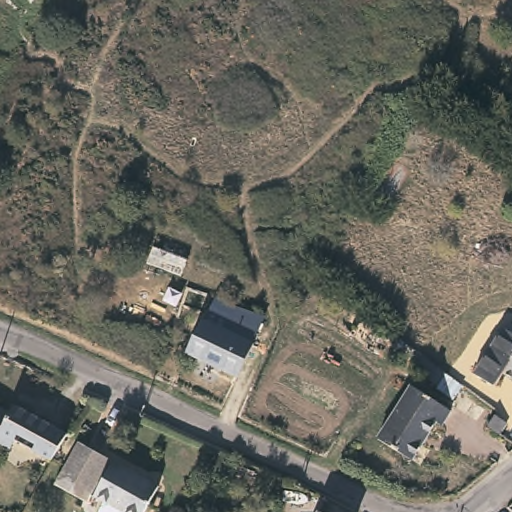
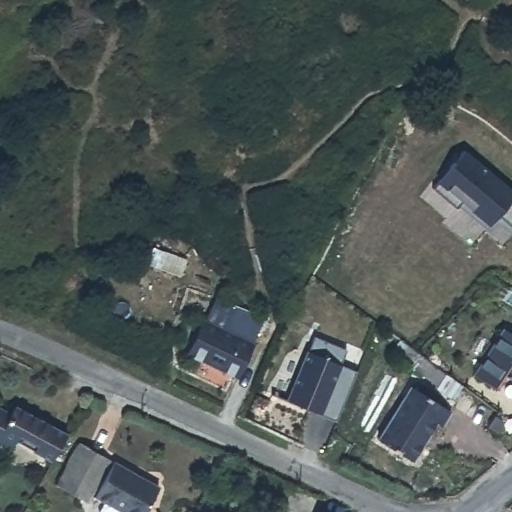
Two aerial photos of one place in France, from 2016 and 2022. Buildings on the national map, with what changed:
new [(510,230),(496,216),(487,226),(461,201),(454,206),(432,186),(465,149),(512,190),(512,227),(510,230)]
unchanged [(203,318),(205,320),(216,297),(265,316),(255,342),(240,378),(187,355),(203,318)]
unchanged [(500,374),(491,387),(470,373),(499,327),(502,330),(507,322),(512,326),(512,381),(500,374)]
new [(306,348),(309,350),(314,335),(345,347),(338,364),(356,370),(336,419),(320,412),(286,398),(306,348)]
unchanged [(443,374),(433,385),(411,368),(419,356),(443,374)]
unchanged [(447,411),(438,425),(432,422),(408,460),(374,440),(407,386),(447,411)]
unchanged [(0,404),(13,411),(17,403),(70,433),(66,439),(53,459),(18,438),(13,447),(0,440),(0,404)]
unchanged [(511,407),(512,405),(512,408),(511,407)]
unchanged [(504,425),(497,435),(484,426),(491,415),(504,425)]
unchanged [(107,460),(83,502),(51,485),(75,442),(107,460)]
unchanged [(154,487),(140,512),(96,512),(101,502),(91,496),(109,462),(154,487)]

